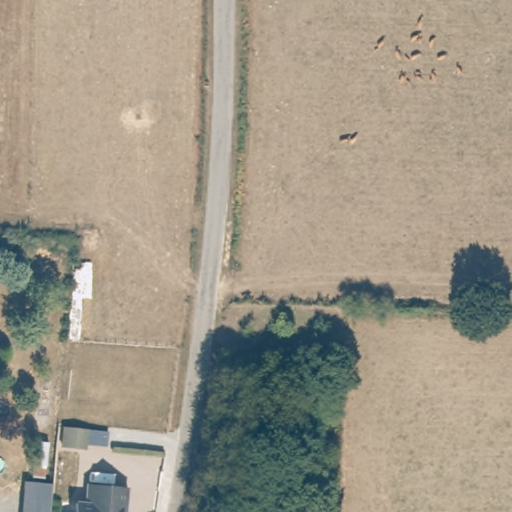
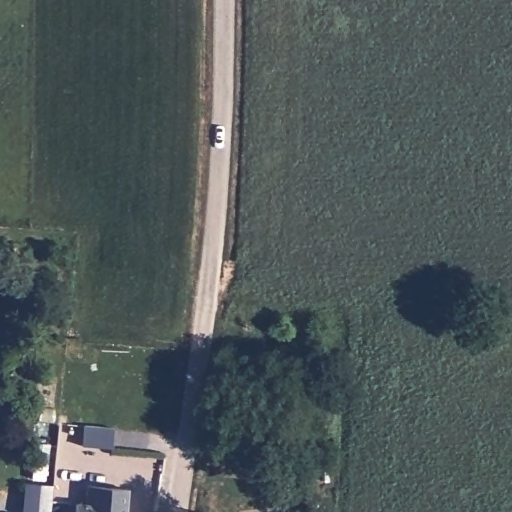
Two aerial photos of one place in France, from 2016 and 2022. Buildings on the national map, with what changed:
unchanged [(46,458),(33,458),(33,438),(46,438),(46,458)]
unchanged [(55,479),(51,512),(23,512),(27,476),(55,479)]
unchanged [(87,503),(87,485),(127,488),(126,512),(76,512),(76,504),(87,503)]

